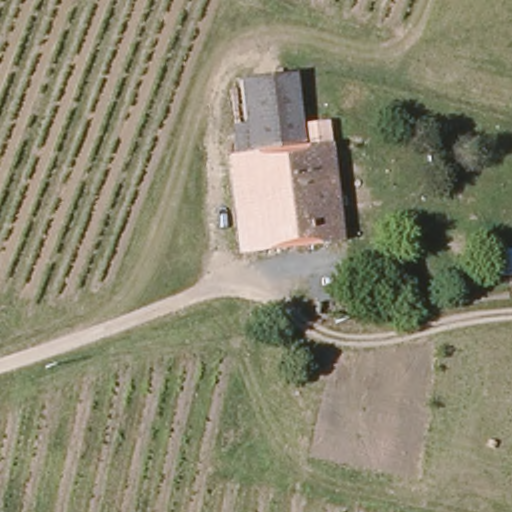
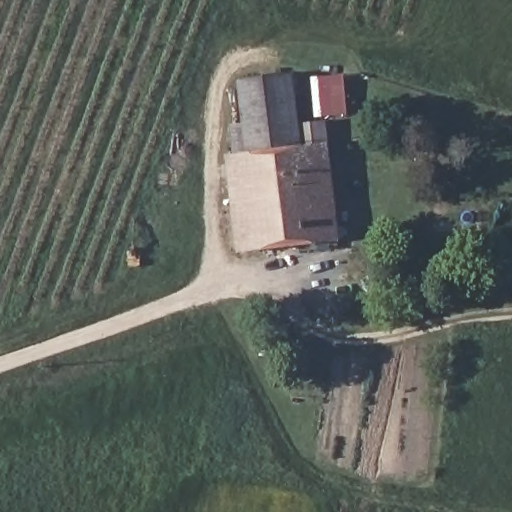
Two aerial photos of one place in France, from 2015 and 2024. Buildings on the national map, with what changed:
new [(316,117),(312,77),(345,75),(348,116),(316,117)]
unchanged [(230,157),(237,156),(235,134),(244,132),(239,82),(295,77),(299,126),(328,122),(340,240),(240,250),(230,157)]

